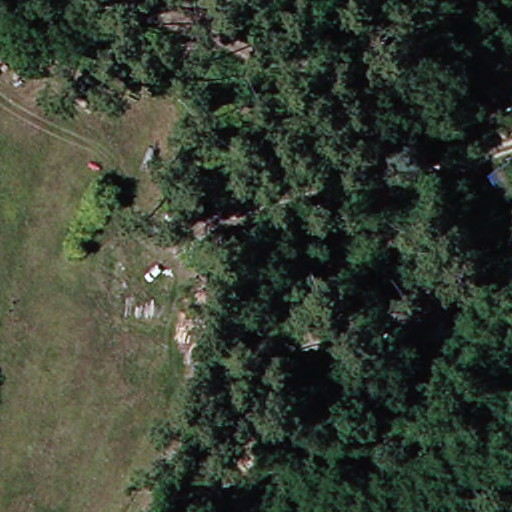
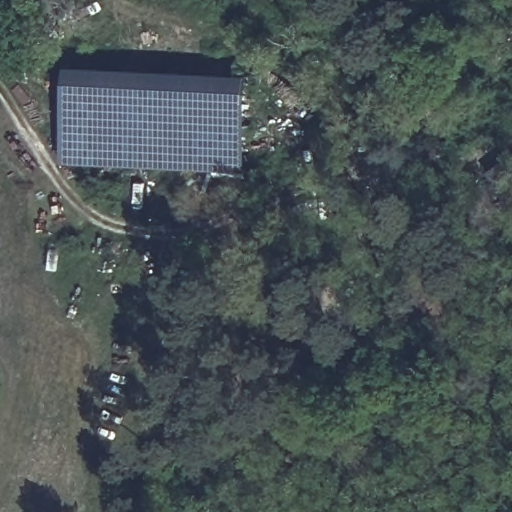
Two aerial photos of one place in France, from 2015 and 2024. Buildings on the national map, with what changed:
new [(64,162),(69,66),(250,76),(245,172),(64,162)]
new [(411,274),(422,280),(428,270),(438,276),(433,286),(453,297),(437,326),(417,315),(412,325),(390,312),(411,274)]

